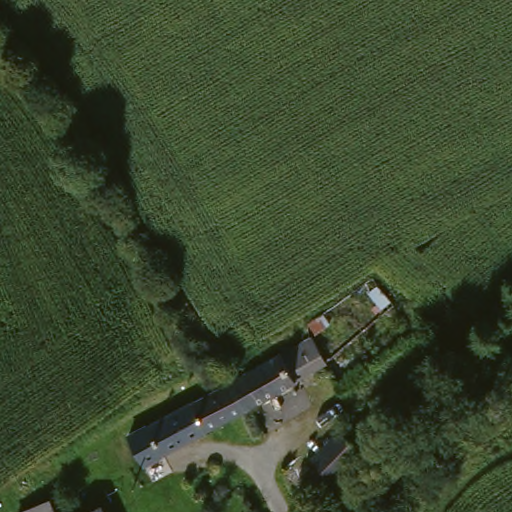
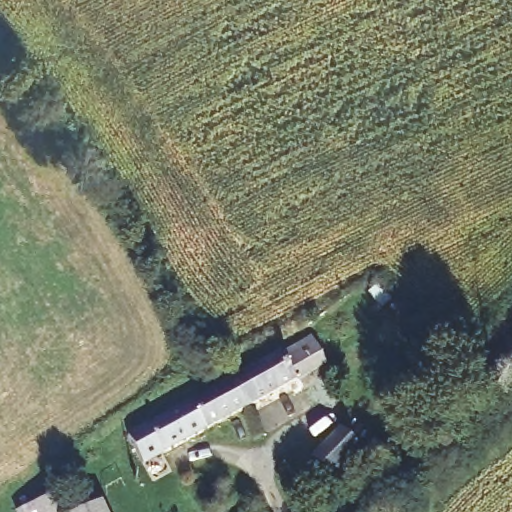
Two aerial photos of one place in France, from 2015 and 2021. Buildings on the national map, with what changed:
unchanged [(283,350),(314,333),(329,359),(298,376),(283,350)]
unchanged [(278,351),(282,349),(283,350),(298,376),(254,401),(238,374),(278,351)]
unchanged [(254,401),(253,402),(191,437),(149,461),(133,434),(152,423),(171,413),(176,409),(217,386),(238,374),(254,401)]
unchanged [(335,481),(311,459),(354,414),(377,443),(335,481)]
unchanged [(53,499),(58,512),(17,512),(53,499)]
unchanged [(96,503),(100,512),(72,512),(96,503)]

